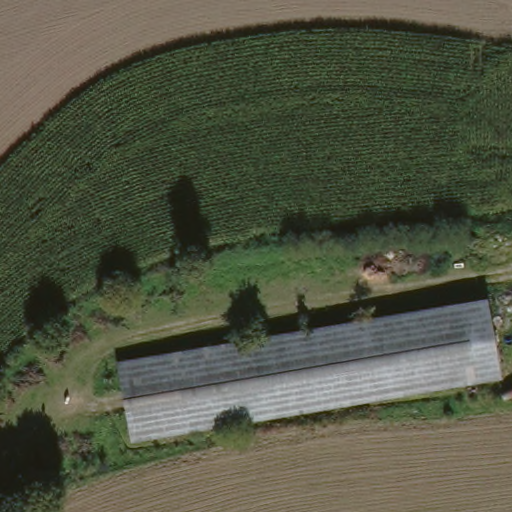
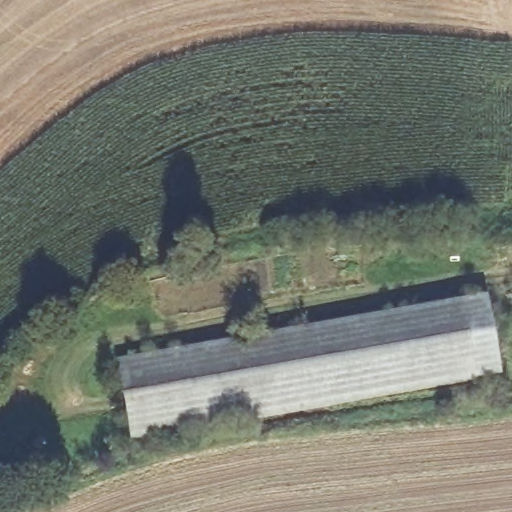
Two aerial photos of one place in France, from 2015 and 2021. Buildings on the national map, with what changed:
unchanged [(126,357),(497,298),(508,375),(136,431),(126,357)]

